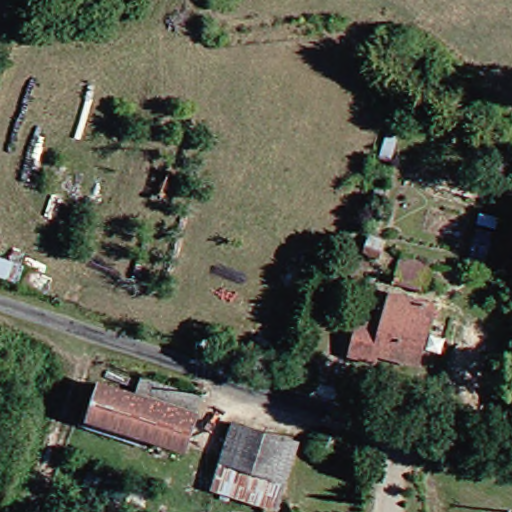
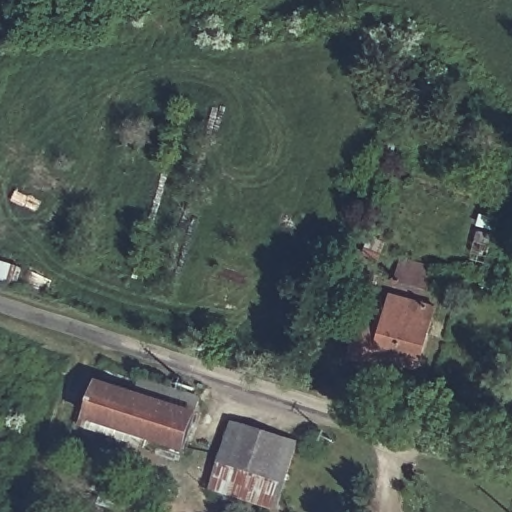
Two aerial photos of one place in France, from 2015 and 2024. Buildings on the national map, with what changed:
unchanged [(410,280),(380,273),(384,251),(415,257),(410,280)]
unchanged [(348,317),(370,324),(380,291),(404,298),(401,308),(422,315),(410,357),(367,345),(365,355),(341,348),(348,317)]
unchanged [(136,377),(194,397),(187,417),(129,397),(136,377)]
unchanged [(176,451),(77,415),(89,385),(129,397),(187,417),(176,451)]
unchanged [(208,487),(227,423),(242,427),(223,491),(208,487)]
unchanged [(223,491),(242,427),(272,437),(250,499),(223,491)]
unchanged [(290,442),(271,506),(250,499),(272,437),(290,442)]

